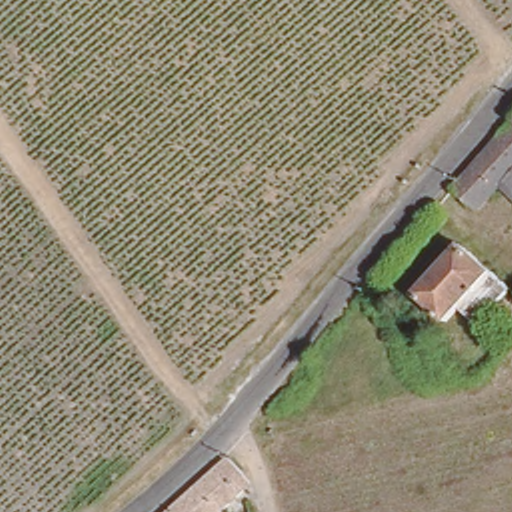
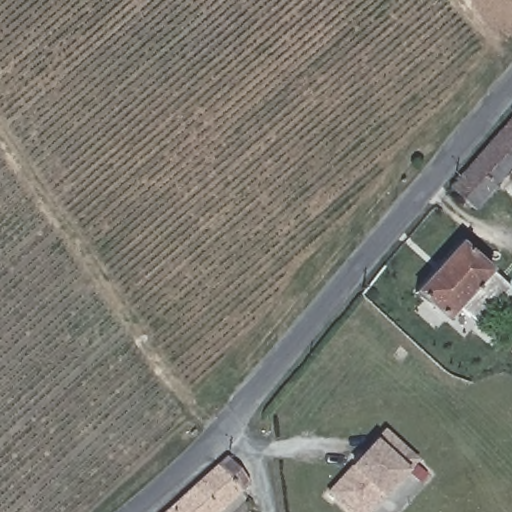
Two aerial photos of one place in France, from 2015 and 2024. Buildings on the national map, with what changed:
unchanged [(496,185),(478,205),(453,184),(506,124),(512,118),(512,199),(496,185)]
unchanged [(504,281),(474,314),(458,301),(443,318),(411,290),(457,240),(504,281)]
new [(384,498),(371,512),(347,512),(327,493),(349,467),(376,439),(386,429),(419,459),(408,472),(384,498)]
unchanged [(240,484),(233,492),(216,510),(214,512),(158,512),(221,457),(232,469),(239,480),(240,484)]

